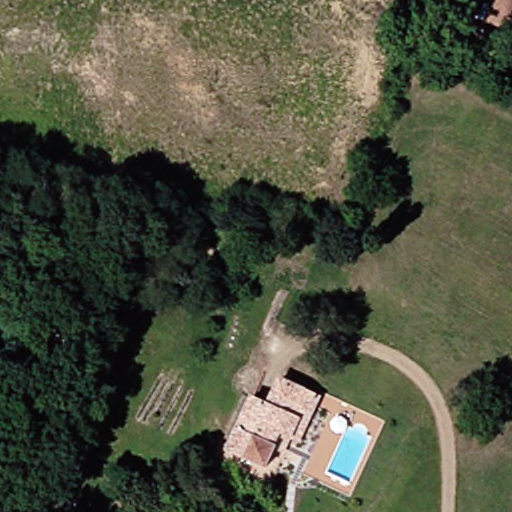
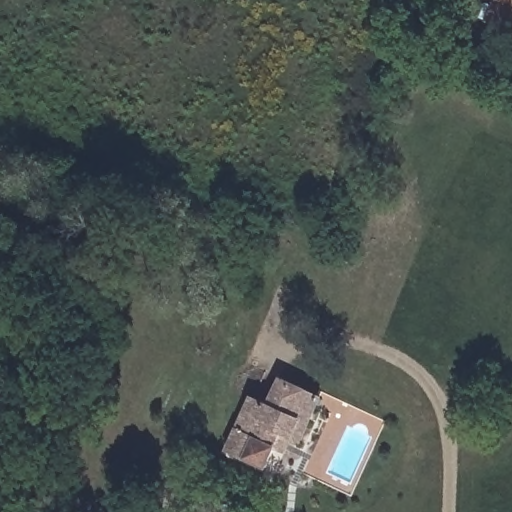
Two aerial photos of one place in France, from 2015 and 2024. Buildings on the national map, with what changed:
unchanged [(487,24),(497,0),(512,0),(512,33),(487,24)]
unchanged [(285,443),(273,466),(231,448),(255,394),(273,402),(285,377),(307,386),(324,393),(307,434),(301,431),(294,448),(285,443)]

